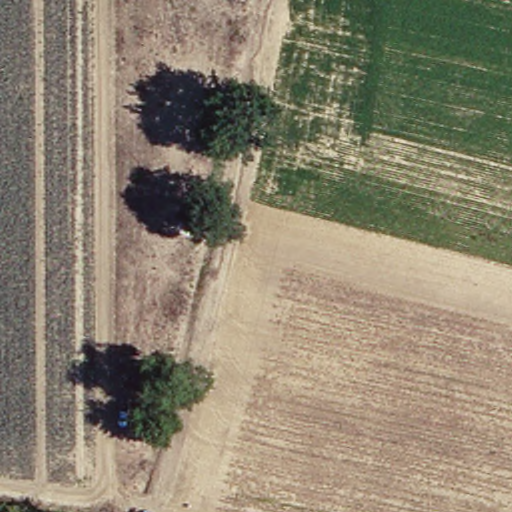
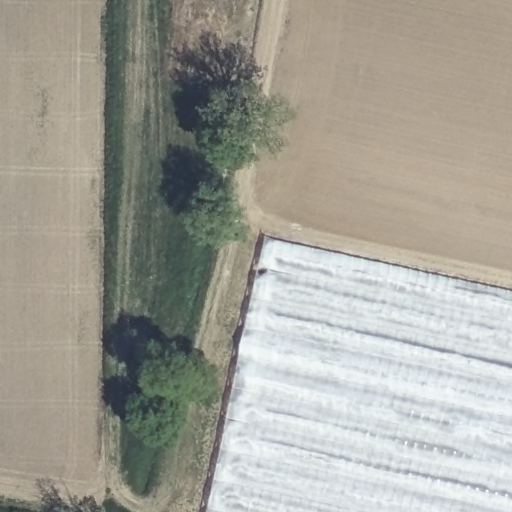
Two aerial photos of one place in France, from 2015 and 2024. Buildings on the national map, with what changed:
new [(207,512),(265,238),(512,292),(512,512),(207,512)]

